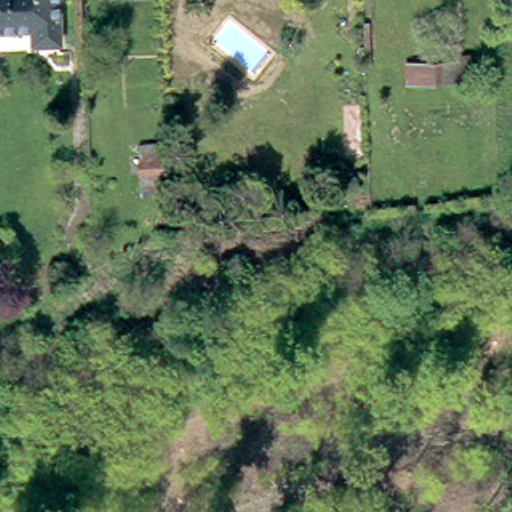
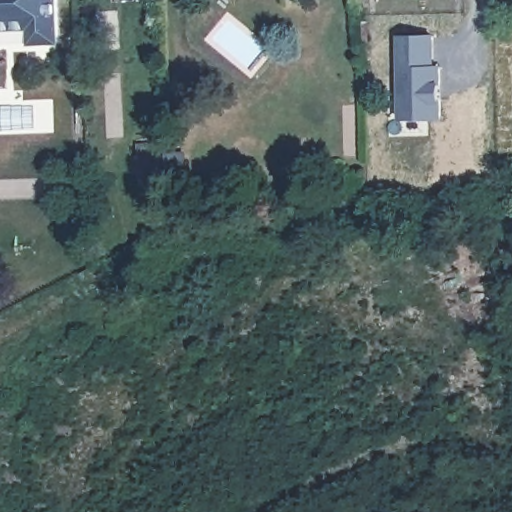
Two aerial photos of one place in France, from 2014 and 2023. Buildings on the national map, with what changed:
unchanged [(38,44),(37,29),(0,31),(0,0),(64,0),(65,43),(38,44)]
new [(435,66),(442,66),(443,120),(399,120),(398,36),(435,35),(435,66)]
demolished [(460,81),(409,84),(408,64),(459,61),(460,81)]
unchanged [(139,145),(161,144),(163,189),(160,189),(160,195),(142,197),(139,145)]

